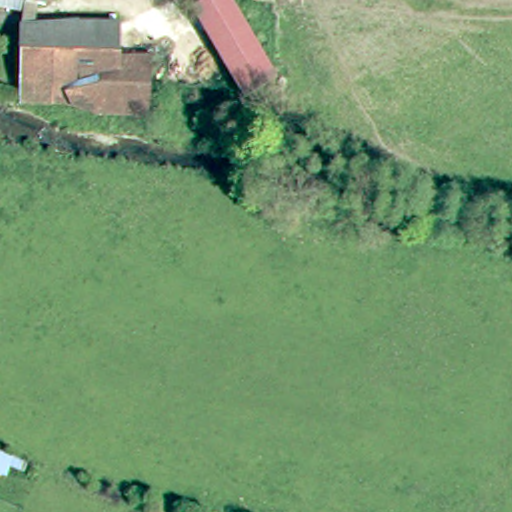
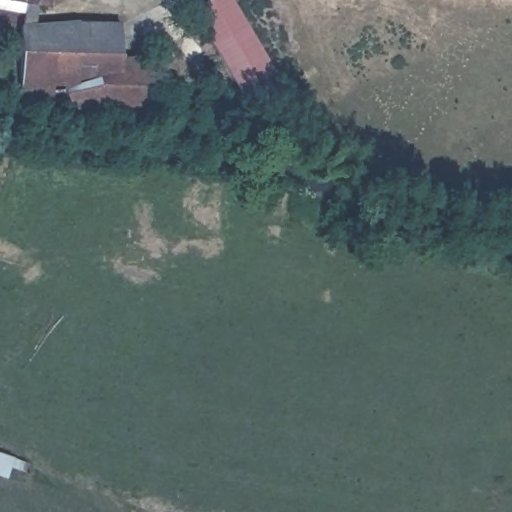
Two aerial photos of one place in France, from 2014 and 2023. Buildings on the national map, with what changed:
unchanged [(0,6),(0,0),(20,0),(19,10),(0,6)]
unchanged [(42,0),(45,0),(45,1),(42,0)]
unchanged [(221,56),(210,36),(206,29),(198,17),(189,4),(195,0),(232,0),(274,72),(238,90),(235,82),(221,56)]
unchanged [(103,111),(77,101),(22,100),(22,94),(25,20),(84,16),(123,17),(142,35),(141,49),(156,50),(153,113),(103,111)]

